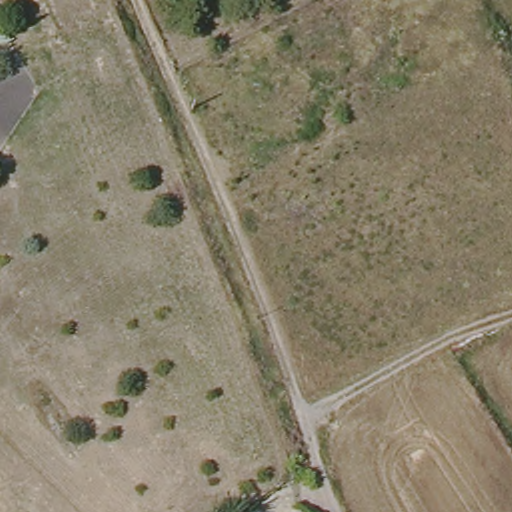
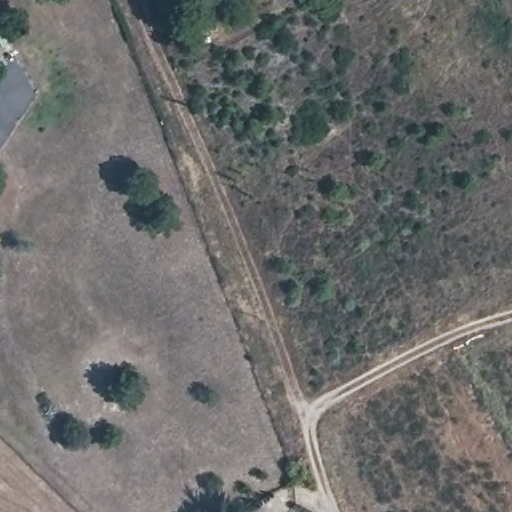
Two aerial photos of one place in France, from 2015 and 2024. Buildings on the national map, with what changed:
unchanged [(0,47),(0,29),(2,32),(11,47),(3,52),(0,47)]

